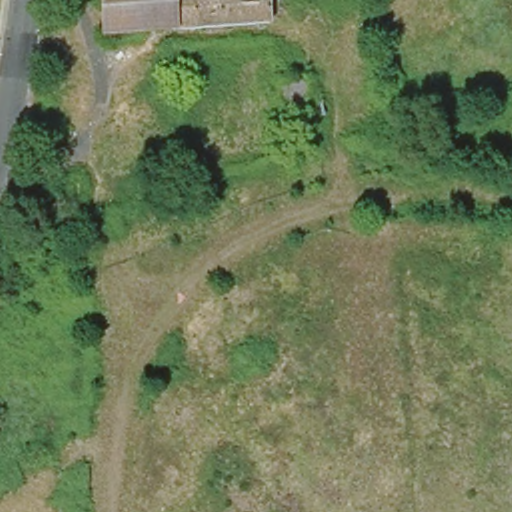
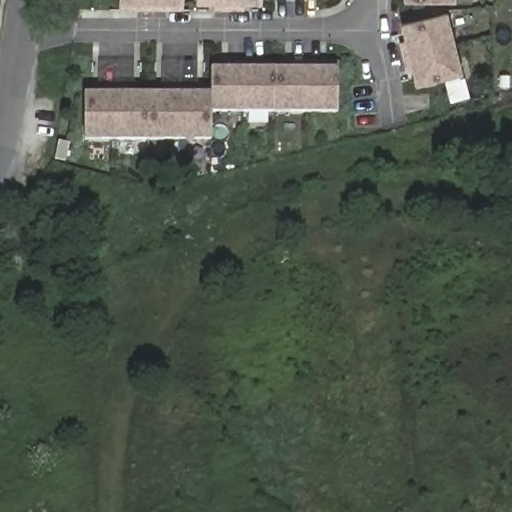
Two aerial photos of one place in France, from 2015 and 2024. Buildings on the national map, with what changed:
demolished [(268,21),(103,34),(100,0),(266,0),(268,21)]
new [(183,5),(182,10),(120,10),(120,5),(120,0),(183,0),(183,5)]
new [(260,4),(197,3),(196,0),(260,0),(260,4)]
new [(456,1),(405,2),(405,0),(456,0),(456,1)]
new [(417,86),(401,26),(447,13),(464,74),(417,86)]
new [(210,66),(338,66),(337,112),(212,110),(208,91),(210,66)]
demolished [(278,110),(275,82),(302,80),(305,107),(278,110)]
new [(208,91),(212,110),(211,140),(84,141),(84,90),(208,91)]
demolished [(311,136),(297,139),(294,117),(308,115),(311,136)]

